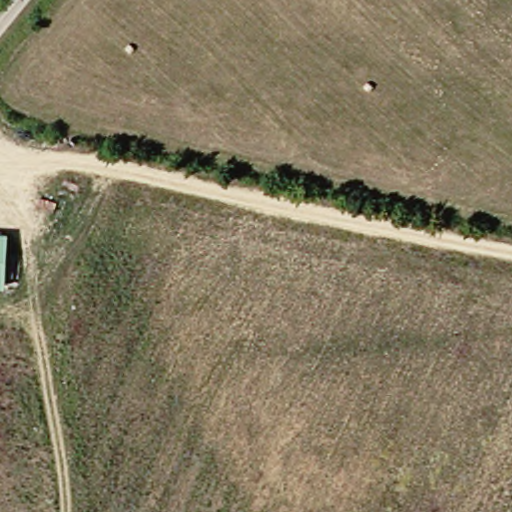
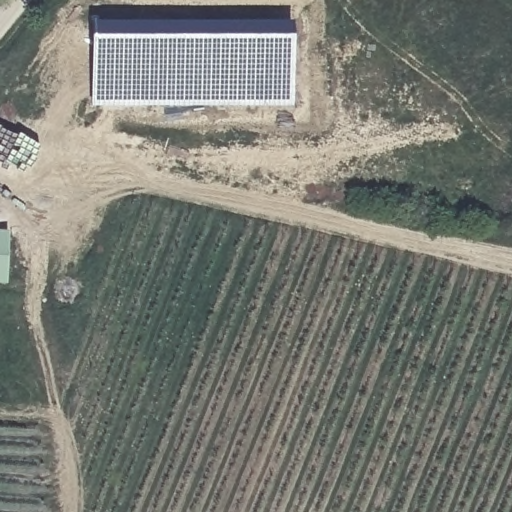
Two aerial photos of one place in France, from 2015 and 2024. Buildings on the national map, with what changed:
new [(91,24),(292,23),(293,106),(90,108),(91,24)]
unchanged [(0,230),(11,231),(9,282),(0,281),(0,230)]

